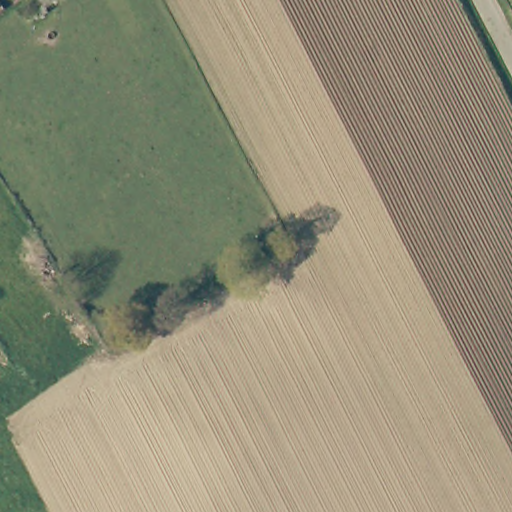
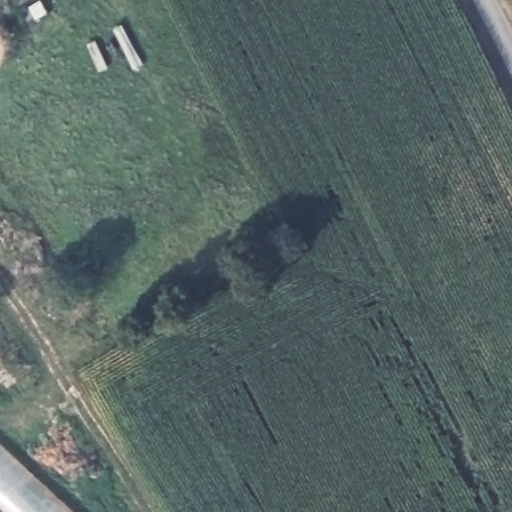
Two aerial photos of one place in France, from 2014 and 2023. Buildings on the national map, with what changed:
new [(0,506),(0,448),(70,512),(7,512),(0,506)]

